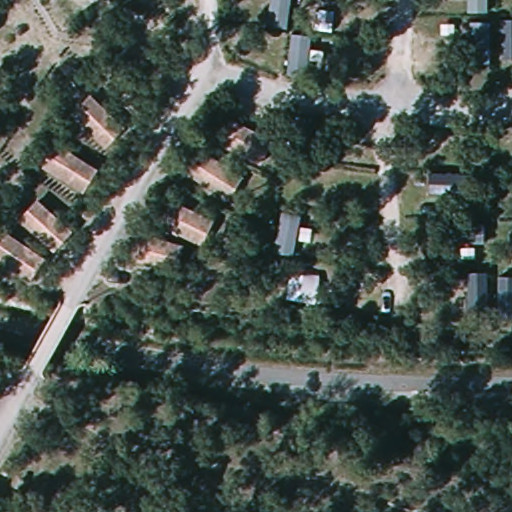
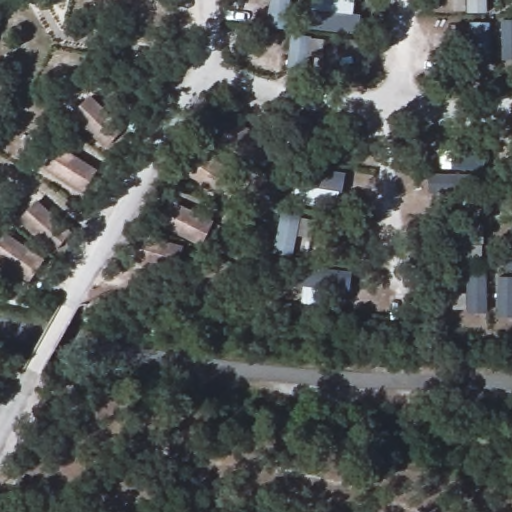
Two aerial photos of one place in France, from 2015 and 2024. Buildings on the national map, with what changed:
unchanged [(94,95),(131,133),(111,154),(78,115),(94,95)]
unchanged [(278,145),(263,170),(220,147),(234,121),(278,145)]
unchanged [(99,172),(84,197),(44,171),(60,146),(99,172)]
unchanged [(246,184),(231,207),(191,178),(206,158),(246,184)]
unchanged [(221,227),(203,250),(159,229),(173,200),(221,227)]
unchanged [(76,232),(57,254),(22,224),(39,202),(76,232)]
unchanged [(184,250),(176,277),(132,265),(140,234),(184,250)]
unchanged [(34,287),(0,266),(0,247),(6,236),(48,261),(34,287)]

